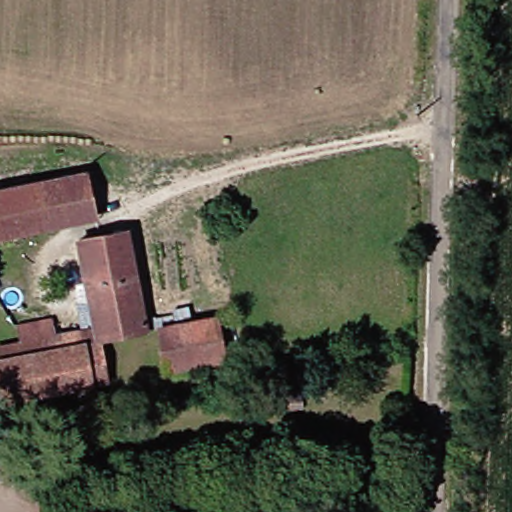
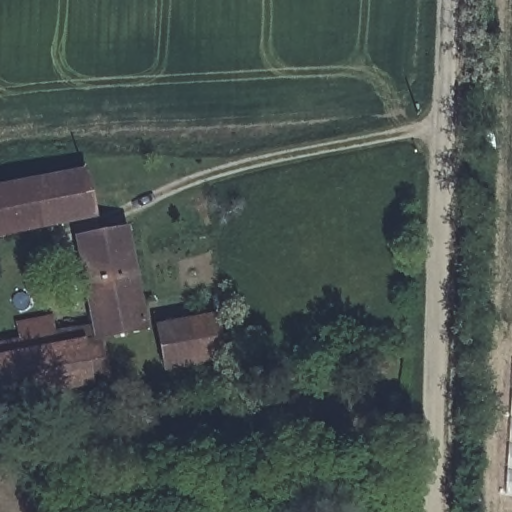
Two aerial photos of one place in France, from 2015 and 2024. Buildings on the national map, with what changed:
unchanged [(0,193),(85,177),(92,218),(0,234),(0,193)]
unchanged [(73,237),(122,227),(139,323),(96,332),(90,333),(88,321),(73,237)]
unchanged [(0,338),(9,337),(8,321),(38,316),(41,330),(88,321),(90,333),(0,350),(0,338)]
unchanged [(157,368),(150,327),(206,317),(213,360),(157,368)]
unchanged [(0,350),(90,333),(96,332),(103,376),(0,394),(0,350)]
new [(506,492),(512,365),(512,495),(506,492)]

